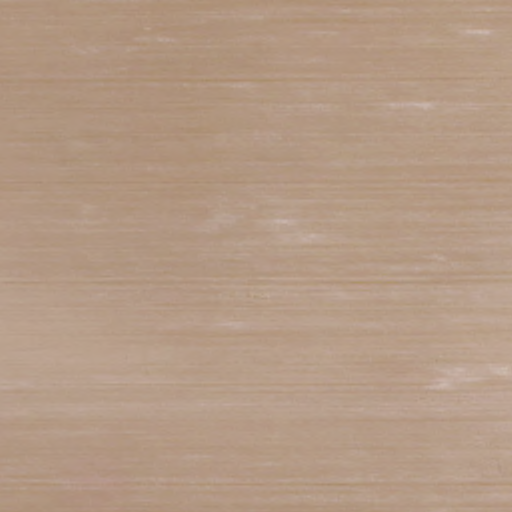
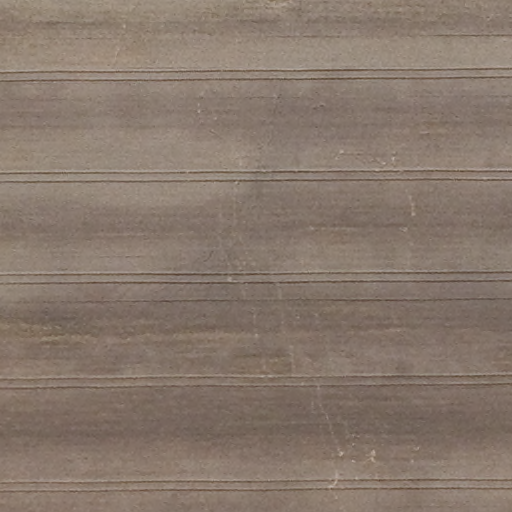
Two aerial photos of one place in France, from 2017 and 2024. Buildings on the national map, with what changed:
[]

